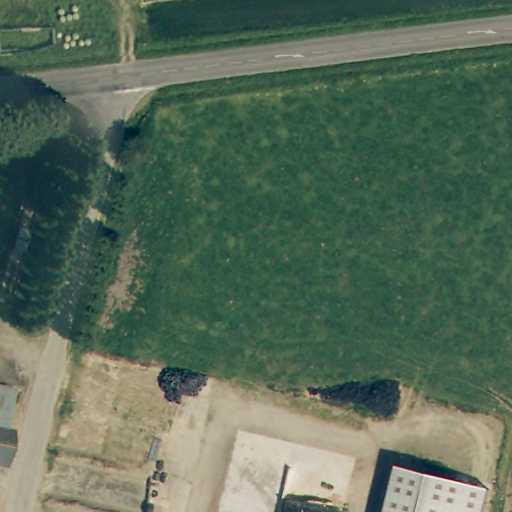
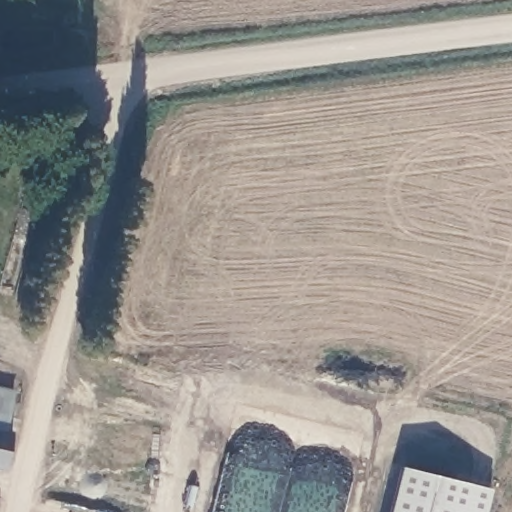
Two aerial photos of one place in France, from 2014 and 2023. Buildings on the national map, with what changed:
unchanged [(8,429),(17,431),(11,466),(0,464),(0,386),(15,389),(8,429)]
unchanged [(398,466),(491,489),(485,512),(387,512),(398,466)]

